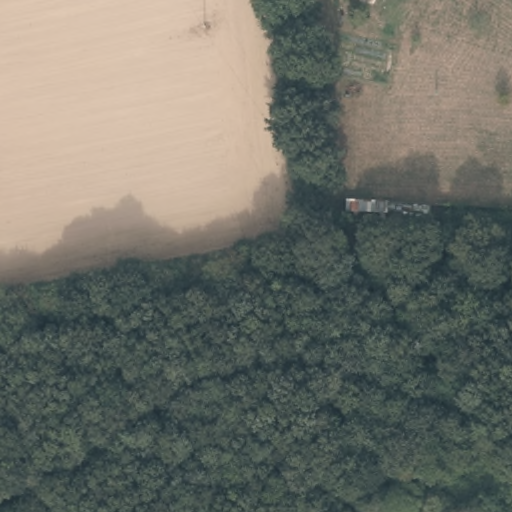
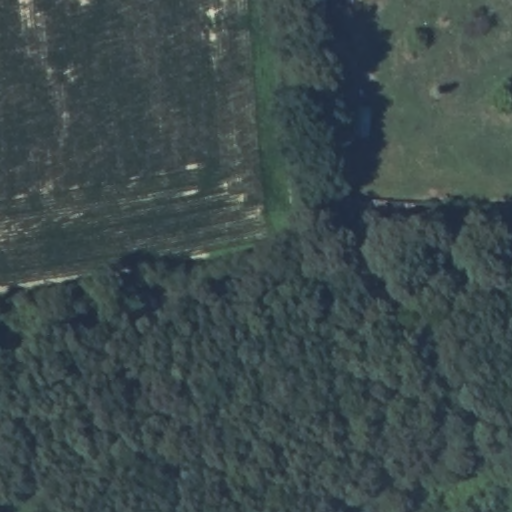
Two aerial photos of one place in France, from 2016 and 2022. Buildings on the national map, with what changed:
unchanged [(512,206),(512,221),(344,213),(343,198),(512,206)]

